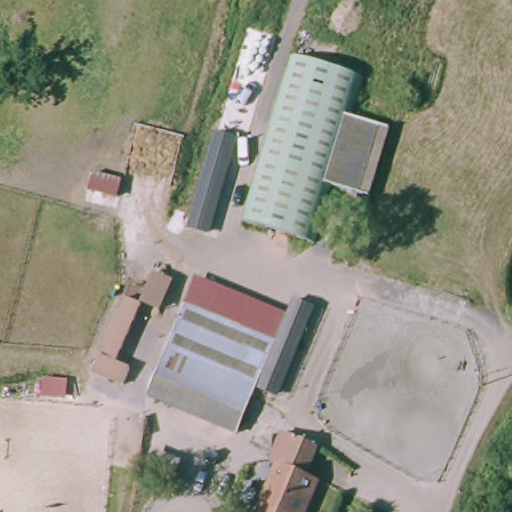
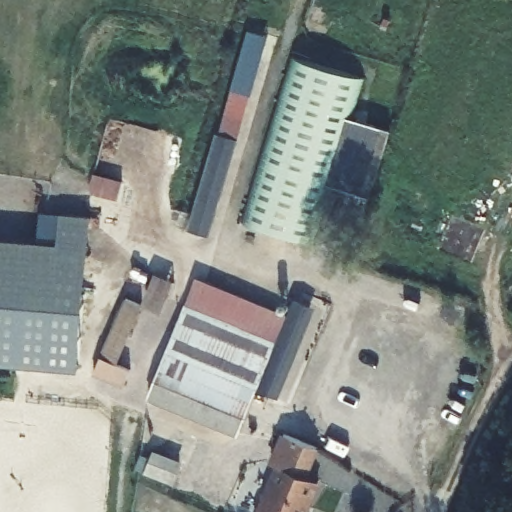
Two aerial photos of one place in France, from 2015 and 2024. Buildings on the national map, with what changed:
new [(267,42),(249,102),(234,97),(252,38),(267,42)]
unchanged [(317,241),(243,217),(297,55),(369,77),(355,121),(334,190),(317,241)]
unchanged [(371,201),(334,190),(355,121),(392,133),(371,201)]
unchanged [(237,140),(209,234),(189,227),(218,133),(237,140)]
new [(60,211),(92,215),(79,371),(0,364),(0,237),(58,242),(60,211)]
unchanged [(173,281),(160,311),(145,306),(121,361),(131,366),(122,385),(92,371),(126,296),(140,302),(153,272),(173,281)]
unchanged [(183,305),(196,275),(287,313),(295,297),(315,307),(278,397),(260,388),(277,340),(183,305)]
unchanged [(277,340),(242,440),(149,401),(183,305),(277,340)]
unchanged [(305,512),(257,512),(276,474),(266,468),(280,438),(315,455),(304,478),(318,485),(305,512)]

